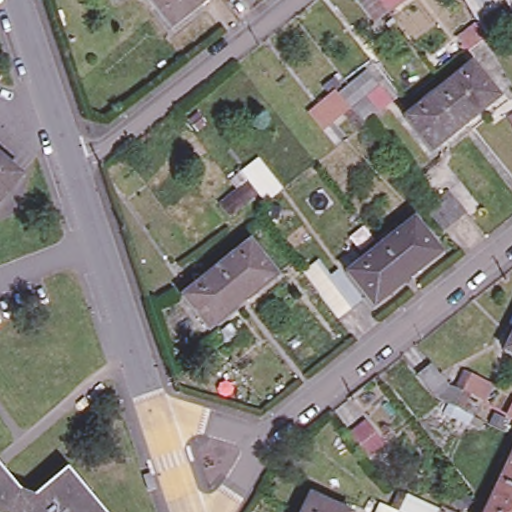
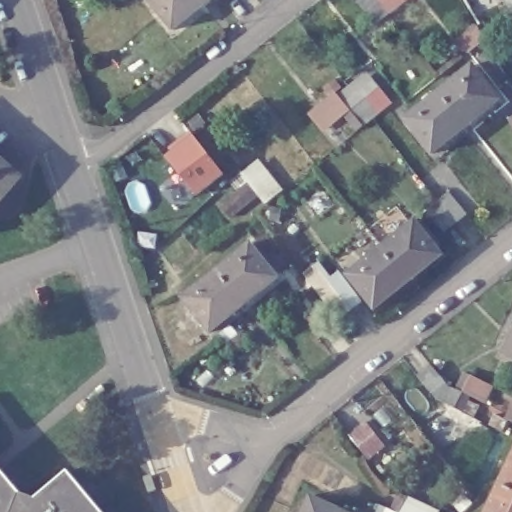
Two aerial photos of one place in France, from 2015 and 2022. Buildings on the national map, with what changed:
unchanged [(154,0),(213,0),(177,29),(154,0)]
unchanged [(409,0),(403,5),(389,15),(374,26),(359,6),(366,0),(409,0)]
unchanged [(504,0),(512,0),(512,16),(509,10),(504,0)]
unchanged [(487,42),(473,53),(462,40),(478,26),(487,42)]
unchanged [(431,153),(404,120),(471,68),(497,101),(431,153)]
unchanged [(349,105),(378,83),(386,94),(358,116),(366,126),(359,131),(334,101),(341,96),(349,105)]
new [(169,148),(178,141),(190,131),(224,174),(196,196),(166,157),(172,152),(169,148)]
unchanged [(18,180),(0,202),(0,164),(18,180)]
unchanged [(221,205),(249,183),(243,175),(249,171),(272,199),(266,205),(259,196),(231,218),(221,205)]
unchanged [(441,203),(452,194),(469,216),(458,225),(448,233),(430,211),(441,203)]
unchanged [(373,309),(346,275),(412,223),(439,256),(373,309)]
unchanged [(211,331),(184,297),(251,244),(279,278),(211,331)]
unchanged [(314,268),(329,288),(341,278),(360,302),(348,312),(336,322),(318,298),(302,277),(314,268)]
unchanged [(512,345),(512,358),(507,356),(512,345)]
unchanged [(473,430),(448,418),(454,409),(438,400),(420,377),(434,366),(452,389),(463,394),(472,377),(478,381),(463,413),(478,421),(473,430)]
unchanged [(368,422),(387,446),(369,460),(349,436),(368,422)]
unchanged [(512,455),(512,512),(485,512),(512,455)]
unchanged [(19,495),(38,503),(70,476),(100,512),(0,512),(0,472),(19,495)]
unchanged [(396,495),(404,499),(399,508),(407,512),(388,512),(396,495)]
unchanged [(311,499),(339,512),(305,512),(311,499)]

